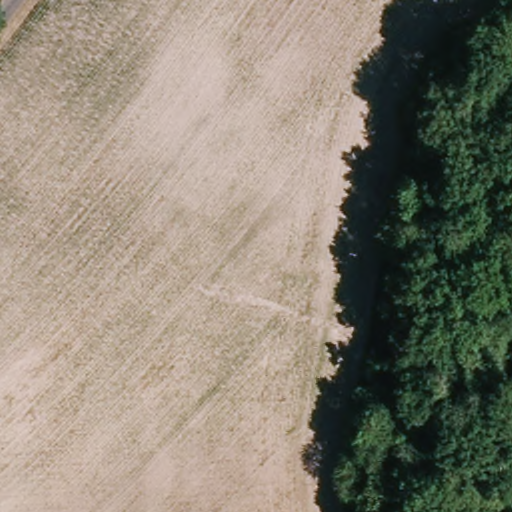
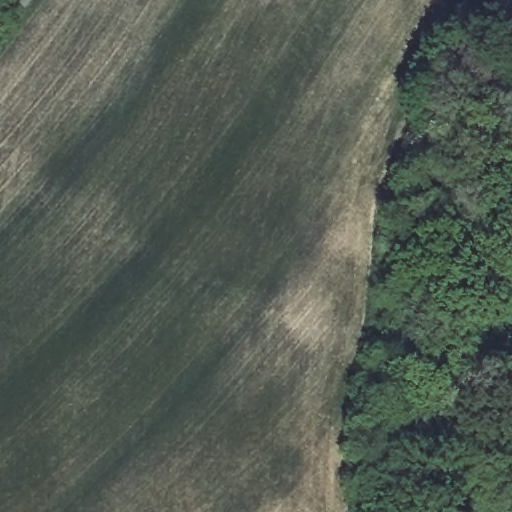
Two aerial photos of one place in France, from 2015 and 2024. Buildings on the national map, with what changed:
[]

